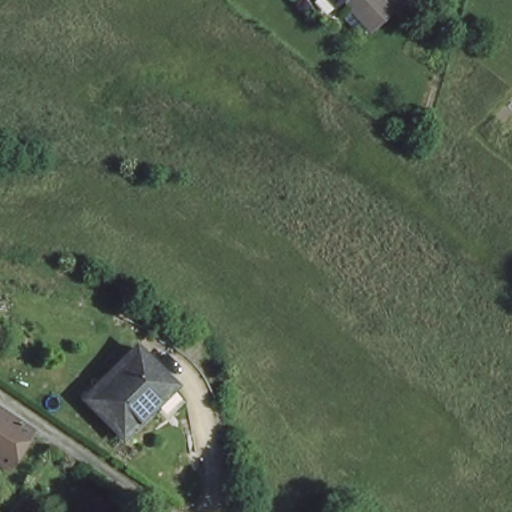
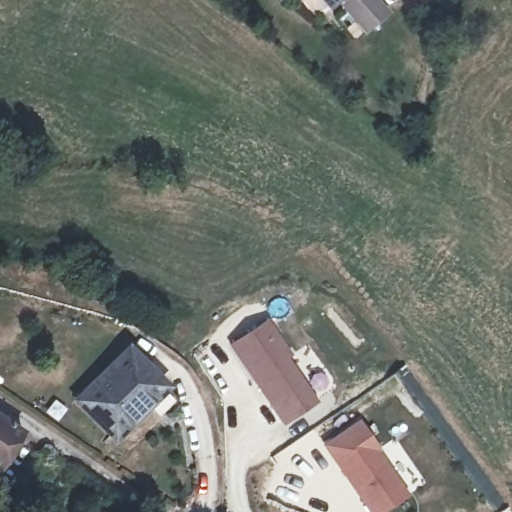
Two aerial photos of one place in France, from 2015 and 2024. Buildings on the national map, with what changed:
unchanged [(318,0),(337,0),(327,9),(318,0)]
unchanged [(327,9),(339,0),(385,0),(391,6),(353,37),(323,13),(327,9)]
new [(316,383),(276,413),(220,338),(262,309),(316,383)]
unchanged [(114,435),(75,394),(128,342),(167,383),(114,435)]
unchanged [(0,418),(26,435),(0,470),(0,418)]
new [(359,419),(410,496),(385,512),(367,512),(321,444),(359,419)]

